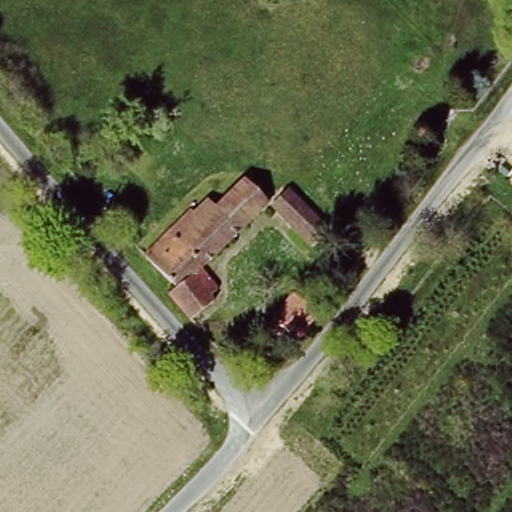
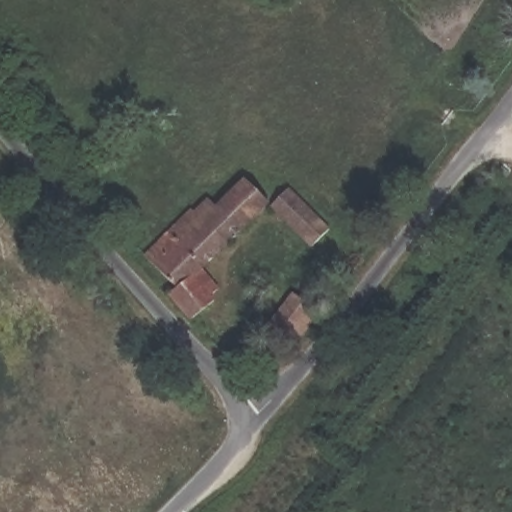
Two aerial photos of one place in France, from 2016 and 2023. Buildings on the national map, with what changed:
unchanged [(194,214),(198,217),(211,204),(220,213),(246,186),(261,202),(196,270),(213,287),(208,293),(215,301),(212,304),(214,306),(199,320),(178,301),(182,296),(183,294),(150,260),(194,214)]
unchanged [(326,230),(309,247),(269,207),(286,190),(326,230)]
unchanged [(319,310),(290,340),(268,320),(298,289),(319,310)]

